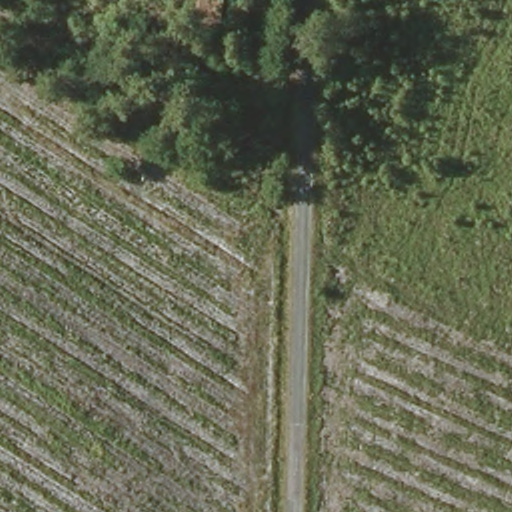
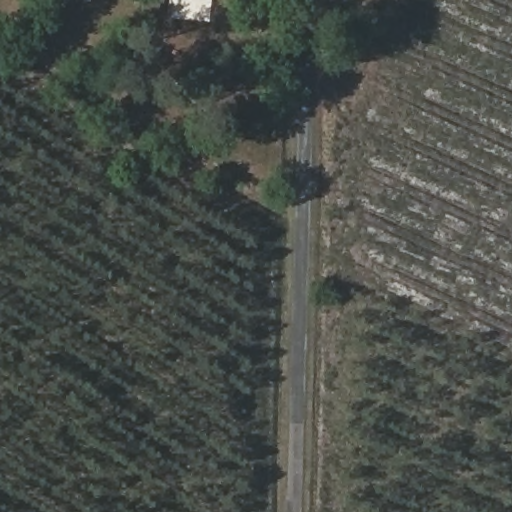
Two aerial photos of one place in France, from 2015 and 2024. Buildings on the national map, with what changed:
unchanged [(205,23),(205,0),(225,0),(225,23),(205,23)]
unchanged [(232,9),(232,0),(282,0),(281,11),(232,9)]

